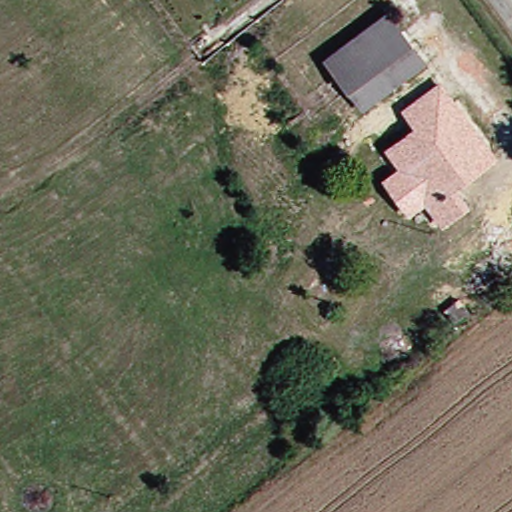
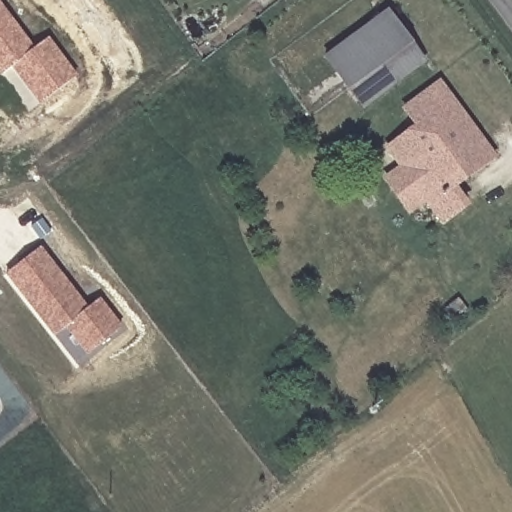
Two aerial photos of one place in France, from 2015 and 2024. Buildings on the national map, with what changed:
new [(38,47),(52,36),(81,73),(46,101),(17,63),(5,73),(0,67),(0,0),(1,0),(38,47)]
unchanged [(333,56),(395,11),(432,61),(370,107),(333,56)]
unchanged [(417,123),(403,102),(435,78),(493,157),(452,188),(465,206),(442,223),(386,146),(417,123)]
new [(42,246),(90,308),(104,296),(133,334),(98,361),(69,324),(57,333),(9,272),(42,246)]

